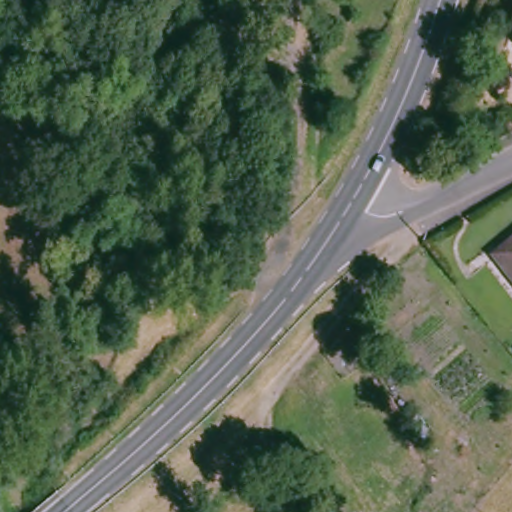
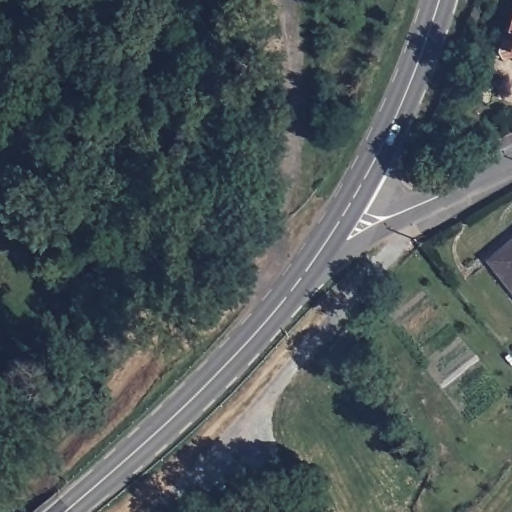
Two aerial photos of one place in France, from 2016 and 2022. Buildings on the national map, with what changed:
unchanged [(512,250),(512,251),(512,279),(497,261),(512,250)]

